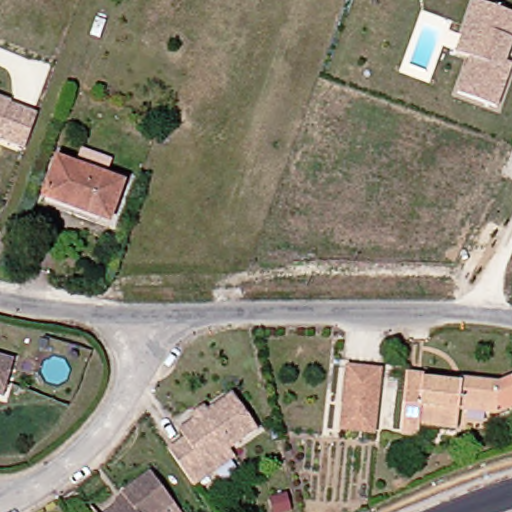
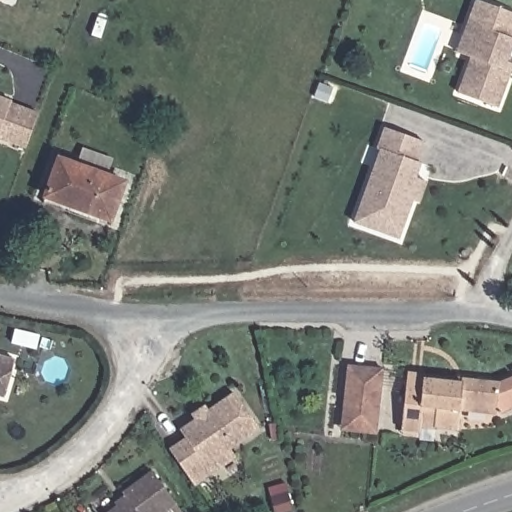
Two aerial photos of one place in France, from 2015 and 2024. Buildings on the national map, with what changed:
unchanged [(497,109),(457,95),(470,59),(456,54),(462,36),(474,1),(512,15),(512,45),(505,63),(512,65),(512,67),(510,73),(497,109)]
unchanged [(9,102),(8,104),(36,115),(29,135),(24,150),(0,140),(0,98),(9,102)]
new [(354,223),(380,149),(377,148),(384,128),(424,143),(418,163),(419,164),(407,197),(412,200),(399,239),(354,223)]
unchanged [(83,214),(79,224),(41,208),(57,163),(114,184),(101,220),(83,214)]
unchanged [(3,368),(0,378),(0,366),(3,368)]
unchanged [(332,429),(335,401),(340,367),(375,371),(371,405),(367,435),(332,429)]
unchanged [(393,428),(401,371),(415,373),(414,378),(454,384),(454,377),(486,382),(507,378),(512,395),(512,405),(493,418),(484,417),(453,413),(450,429),(420,425),(409,424),(408,431),(393,428)]
unchanged [(212,472),(187,490),(161,451),(178,439),(174,434),(193,421),(187,413),(199,406),(205,415),(228,399),(251,433),(224,451),(230,460),(212,472)]
unchanged [(121,502),(117,498),(146,478),(170,512),(109,512),(121,502)]

